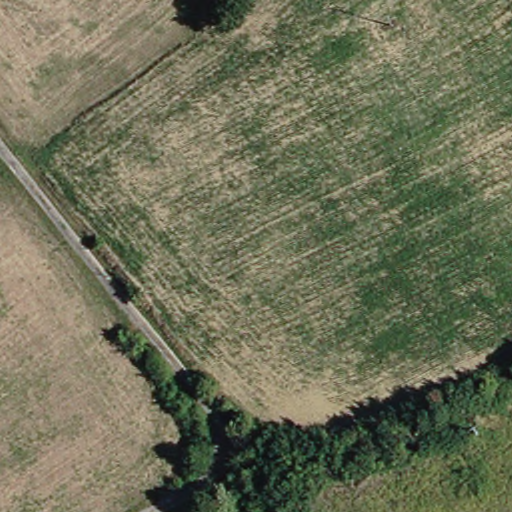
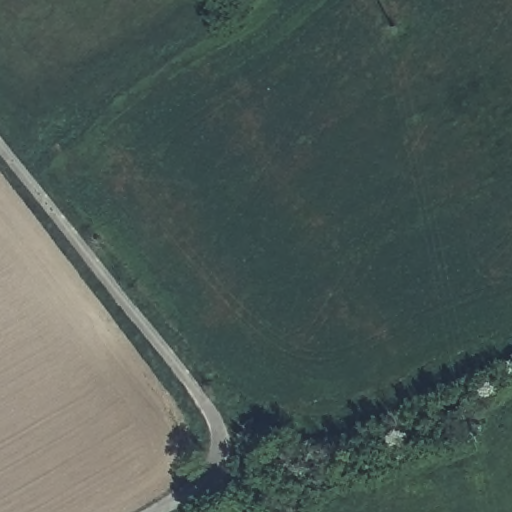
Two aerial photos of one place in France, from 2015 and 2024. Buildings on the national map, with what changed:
unchanged [(262,507),(265,512),(255,512),(262,507)]

